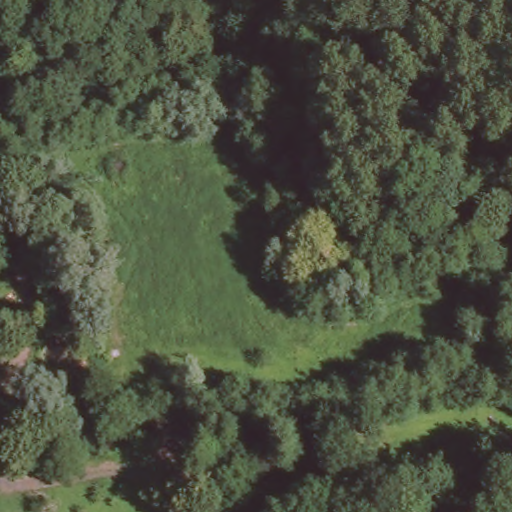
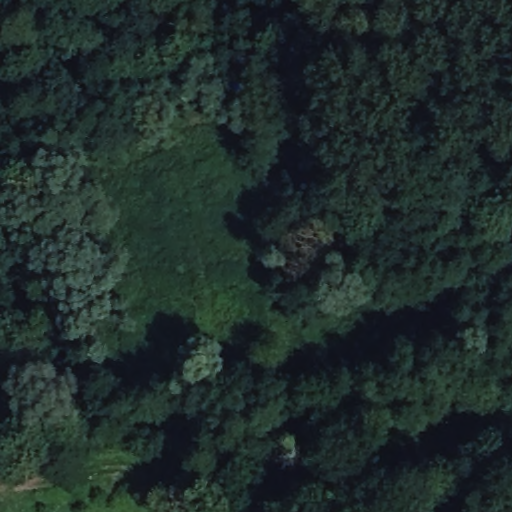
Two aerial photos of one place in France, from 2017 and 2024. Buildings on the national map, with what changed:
unchanged [(309,5),(293,10),(290,0),(308,0),(309,5)]

